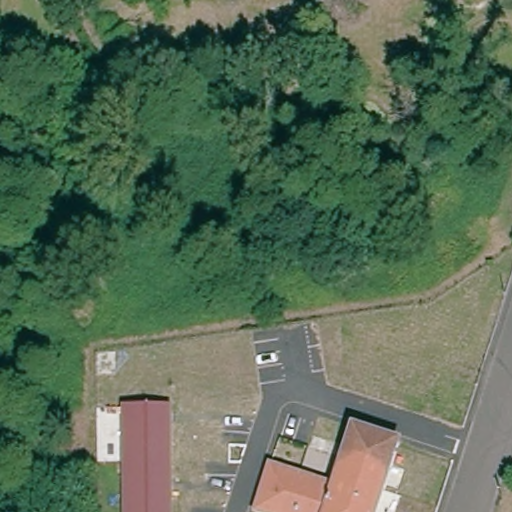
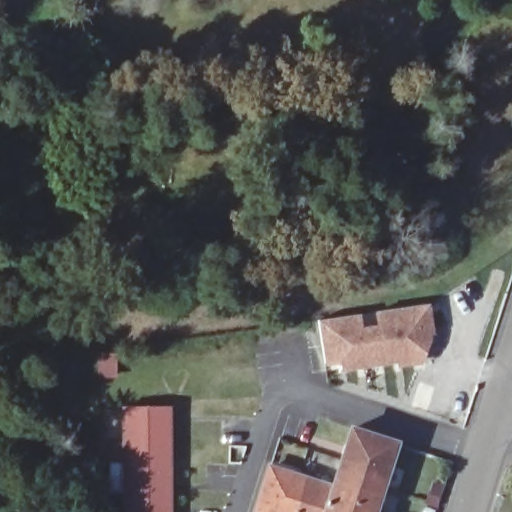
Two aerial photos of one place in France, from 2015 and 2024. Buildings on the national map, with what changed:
new [(377,310),(427,302),(431,330),(427,331),(428,338),(420,360),(399,363),(399,359),(344,367),(343,360),(324,362),(317,319),(358,313),(377,310)]
unchanged [(124,476),(123,406),(161,406),(169,405),(169,422),(169,476),(124,476)]
unchanged [(270,465),(333,486),(343,456),(347,446),(353,428),(397,442),(391,461),(382,489),(374,512),(260,512),(255,510),(270,465)]
unchanged [(169,476),(169,512),(124,512),(124,476),(169,476)]

